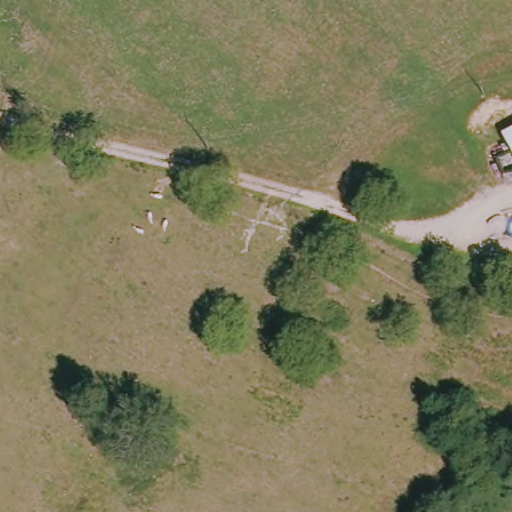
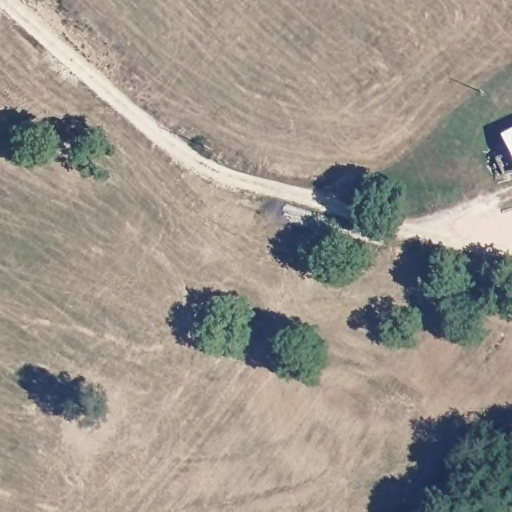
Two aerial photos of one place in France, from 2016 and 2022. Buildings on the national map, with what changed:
unchanged [(500,133),(512,126),(512,154),(500,133)]

